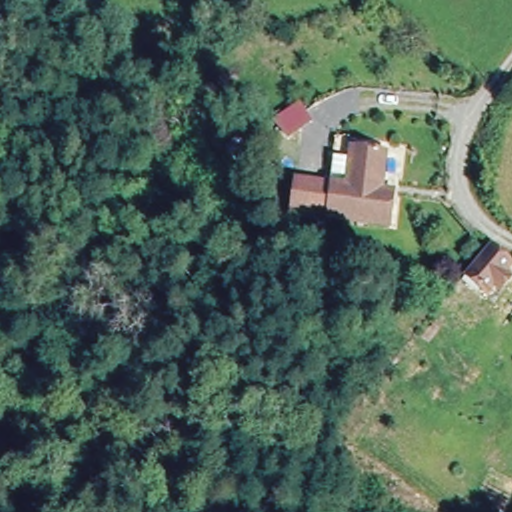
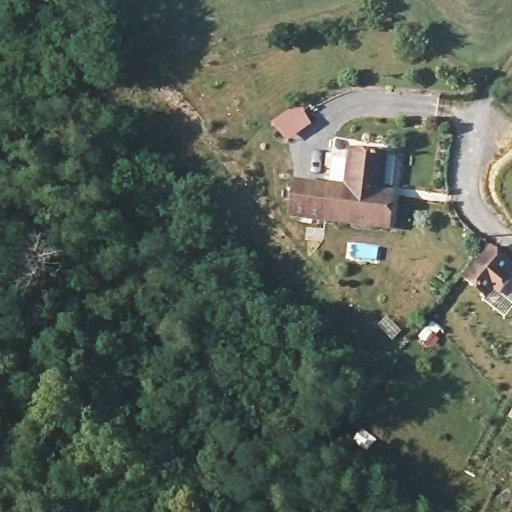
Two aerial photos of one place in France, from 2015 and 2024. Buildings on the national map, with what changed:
unchanged [(382,155),(378,190),(393,192),(388,227),(292,217),(295,182),(329,186),(334,160),(349,161),(351,150),(382,155)]
unchanged [(488,302),(482,297),(476,306),(452,287),(461,276),(477,255),(501,275),(494,283),(500,287),(488,302)]

